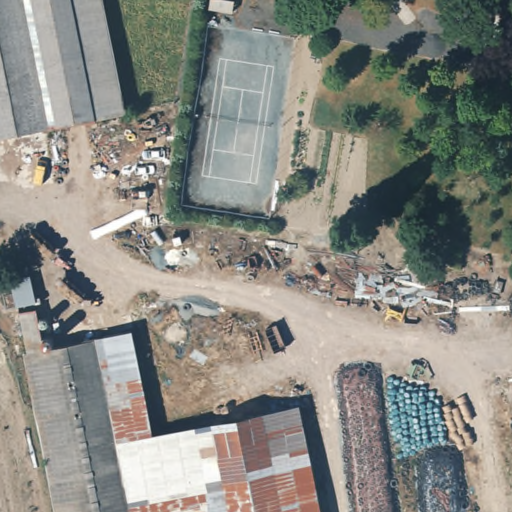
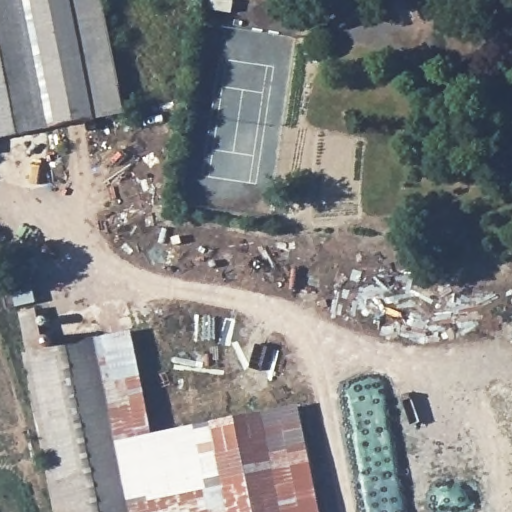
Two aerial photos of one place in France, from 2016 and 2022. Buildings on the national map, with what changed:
unchanged [(0,138),(0,0),(25,0),(49,129),(0,138)]
unchanged [(59,127),(34,0),(107,0),(129,114),(59,127)]
unchanged [(131,329),(152,433),(298,403),(320,512),(133,512),(100,341),(131,329)]
unchanged [(100,341),(133,512),(60,512),(28,355),(100,341)]

